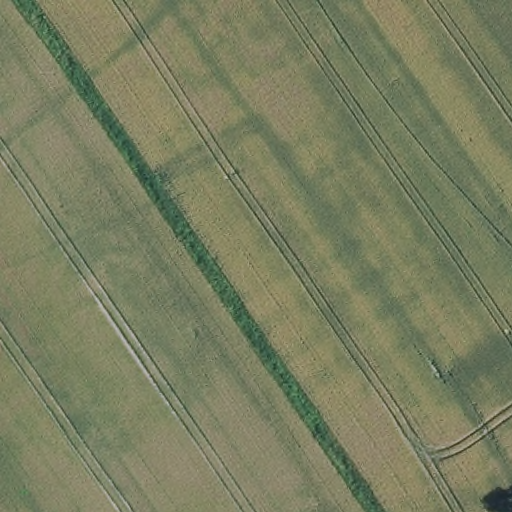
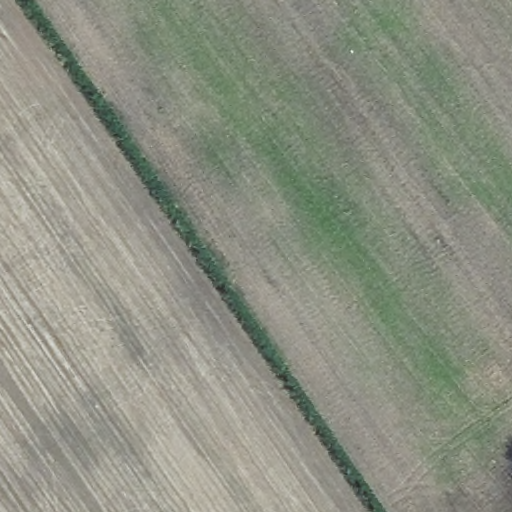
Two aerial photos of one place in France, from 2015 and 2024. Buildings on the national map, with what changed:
[]

